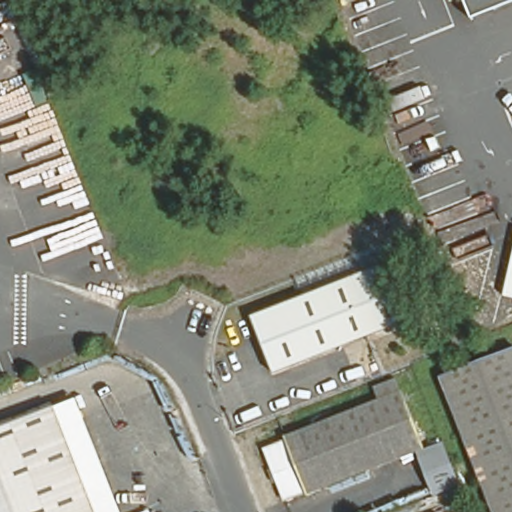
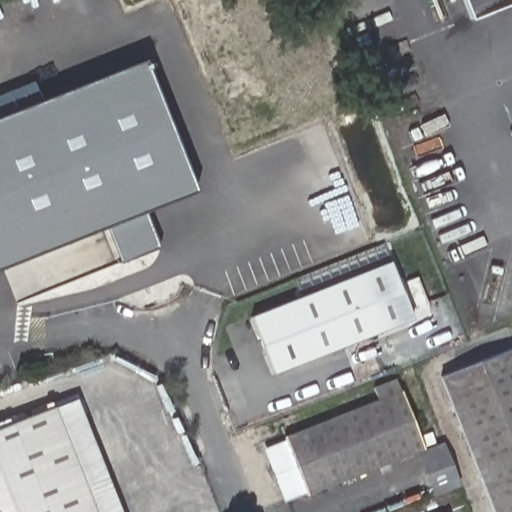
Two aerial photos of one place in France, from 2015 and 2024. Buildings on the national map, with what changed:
unchanged [(512,0),(512,1),(468,17),(462,0),(512,0)]
new [(202,186),(149,206),(163,245),(126,261),(112,224),(0,269),(0,119),(150,60),(202,186)]
unchanged [(269,374),(247,317),(387,263),(408,320),(269,374)]
unchanged [(512,349),(512,512),(493,512),(440,377),(512,349)]
unchanged [(288,440),(286,436),(383,399),(378,385),(396,378),(401,391),(404,390),(426,448),(308,493),(307,488),(287,496),(268,448),(288,440)]
new [(76,398),(120,512),(94,512),(53,407),(76,398)]
unchanged [(53,407),(93,512),(0,512),(0,427),(53,407)]

